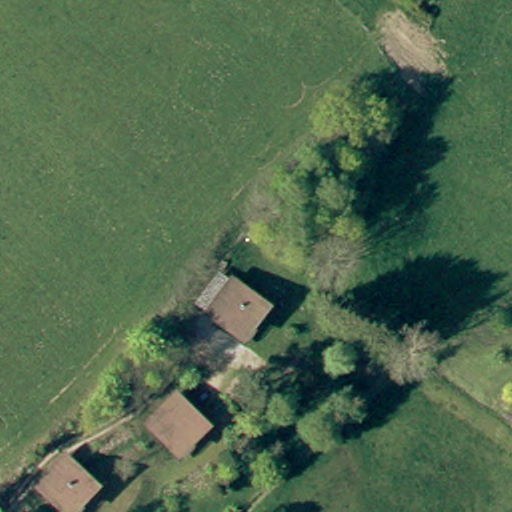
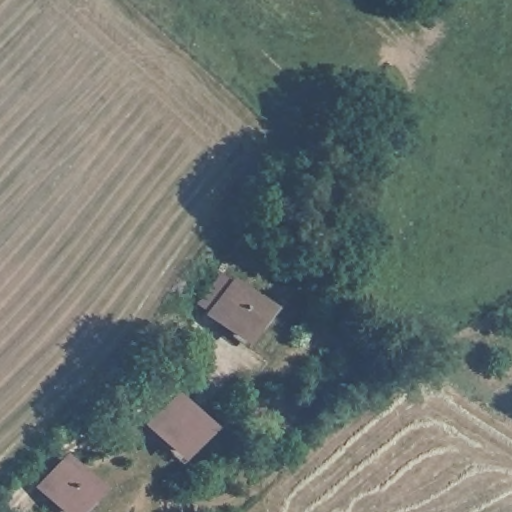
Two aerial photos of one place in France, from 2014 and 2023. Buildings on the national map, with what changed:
unchanged [(246,323),(215,307),(234,273),(265,292),(246,323)]
unchanged [(203,423),(177,449),(152,424),(178,398),(203,423)]
unchanged [(95,481),(70,508),(42,481),(68,456),(95,481)]

